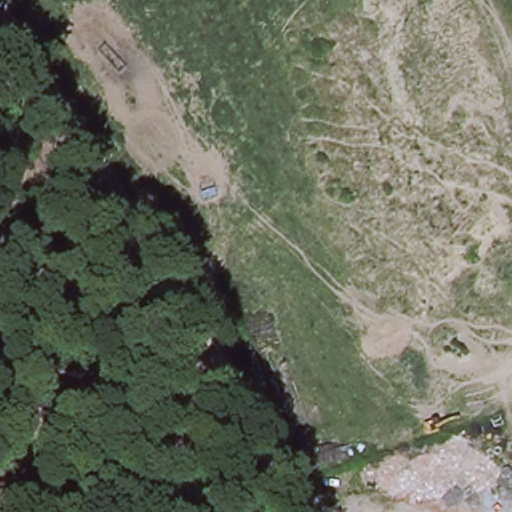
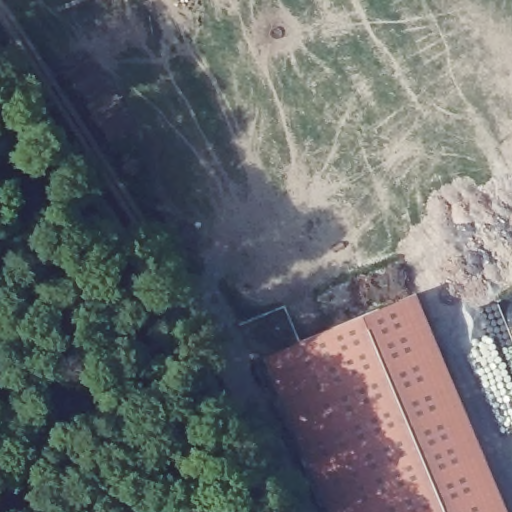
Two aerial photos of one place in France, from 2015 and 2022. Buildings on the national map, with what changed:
new [(417,293),(507,512),(328,512),(266,357),(417,293)]

